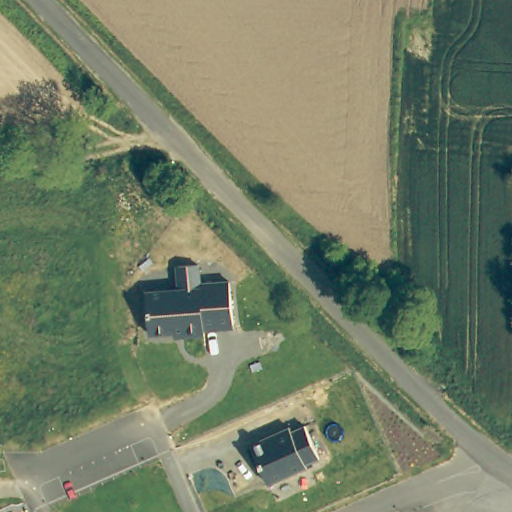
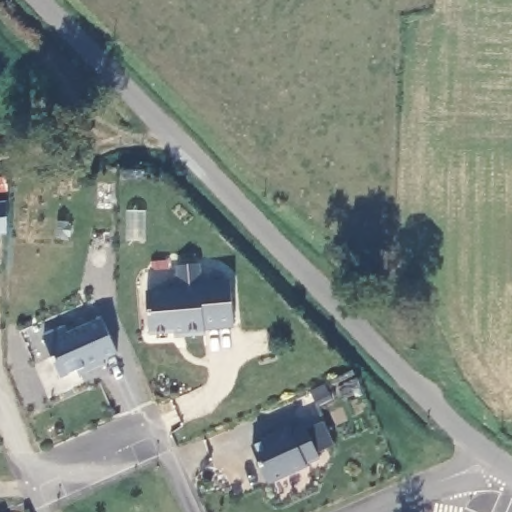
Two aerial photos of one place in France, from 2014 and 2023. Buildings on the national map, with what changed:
new [(7,202),(9,232),(0,233),(0,203),(7,202)]
unchanged [(147,291),(179,287),(176,266),(201,264),(203,282),(230,280),(234,328),(205,332),(205,337),(176,339),(174,333),(150,336),(147,291)]
new [(64,324),(68,333),(103,319),(118,352),(103,359),(105,365),(80,376),(79,372),(61,381),(42,336),(64,324)]
unchanged [(307,464),(308,467),(269,486),(250,444),(290,427),(291,433),(305,425),(320,459),(307,464)]

